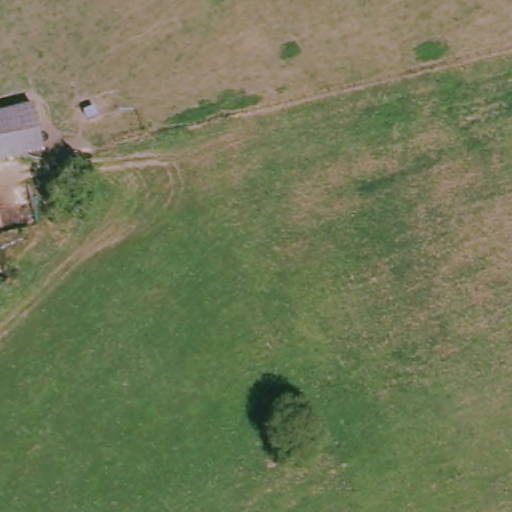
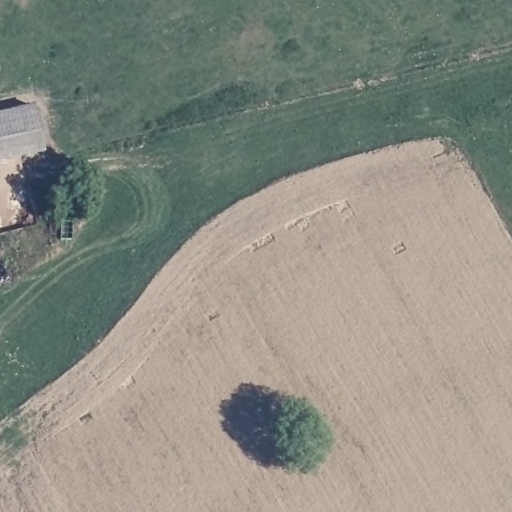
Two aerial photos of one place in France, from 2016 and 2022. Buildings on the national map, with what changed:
unchanged [(30,99),(40,144),(0,154),(0,106),(24,100),(30,99)]

